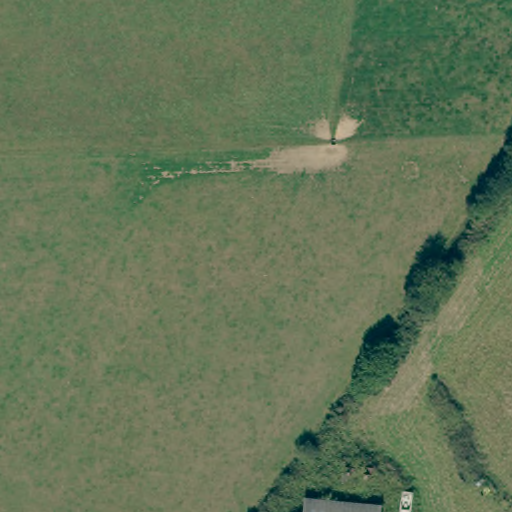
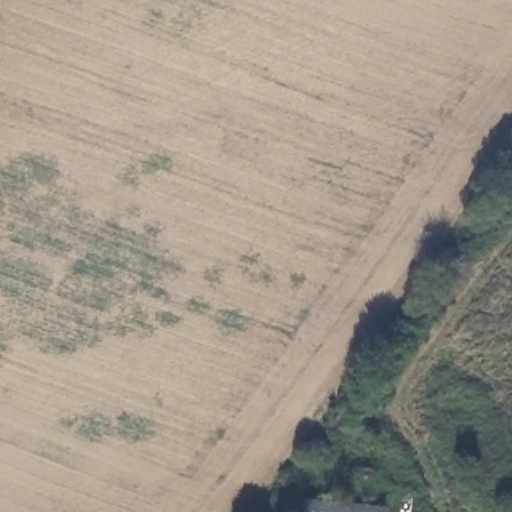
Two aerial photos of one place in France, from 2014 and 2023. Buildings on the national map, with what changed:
unchanged [(377,512),(299,512),(301,497),(378,503),(377,512)]

